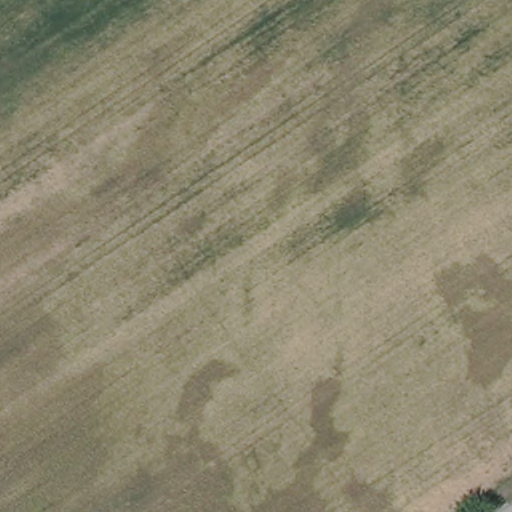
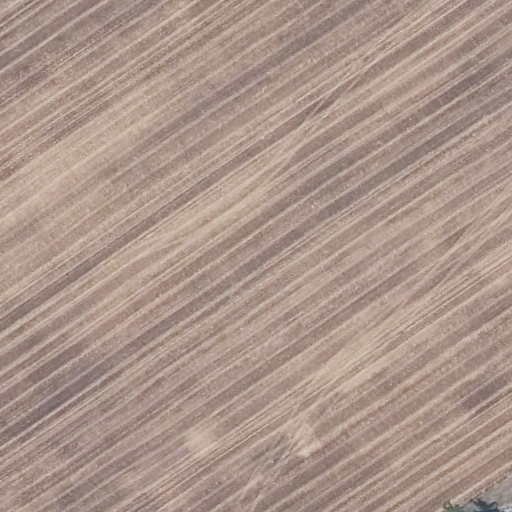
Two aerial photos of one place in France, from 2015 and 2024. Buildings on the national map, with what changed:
[]

